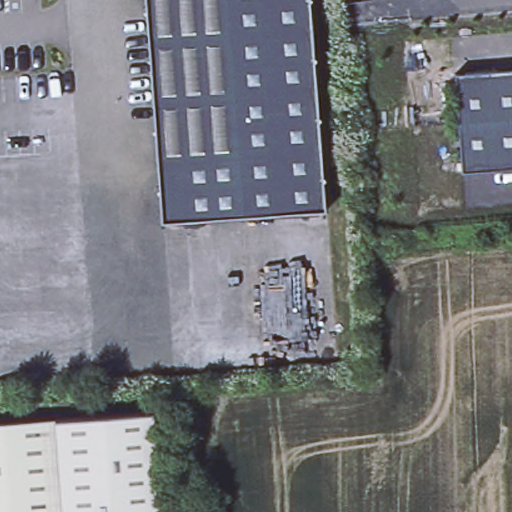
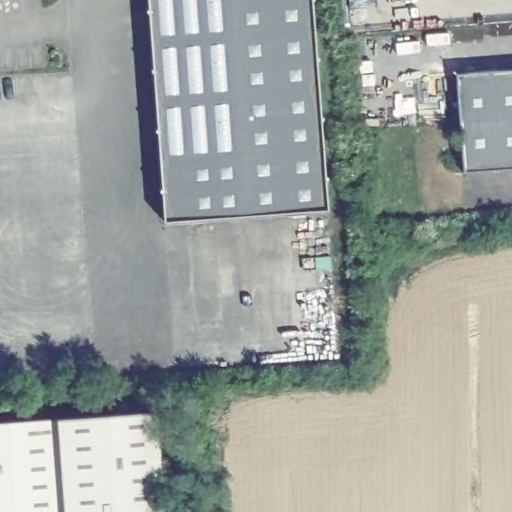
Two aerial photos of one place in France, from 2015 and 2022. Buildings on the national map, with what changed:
unchanged [(330,210),(167,220),(151,0),(315,0),(330,210)]
unchanged [(512,69),(512,167),(464,171),(457,74),(512,69)]
unchanged [(302,340),(318,339),(317,332),(334,330),(337,358),(304,361),(302,340)]
unchanged [(0,512),(0,422),(159,413),(167,512),(0,512)]

